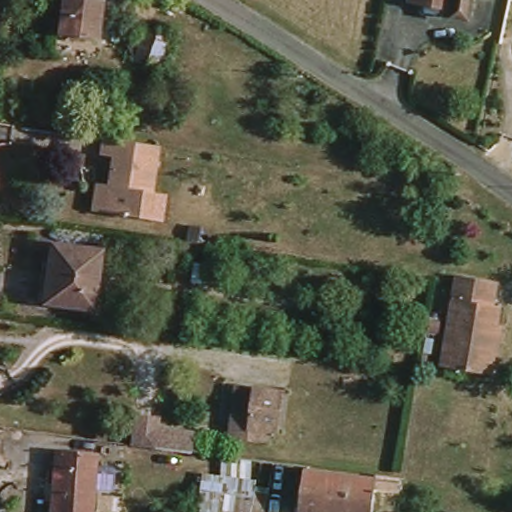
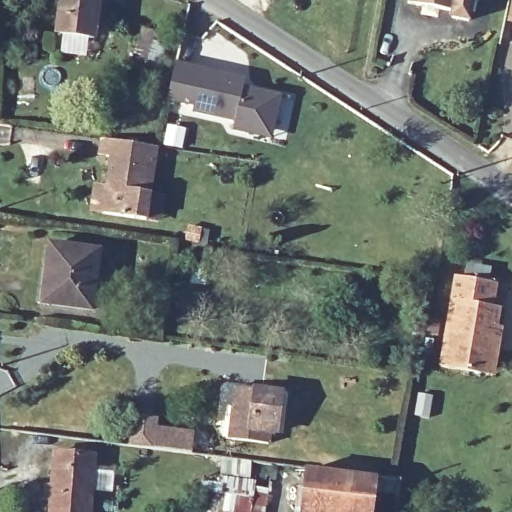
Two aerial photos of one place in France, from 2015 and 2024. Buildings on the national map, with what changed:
unchanged [(100,4),(95,38),(59,33),(64,0),(71,0),(100,4)]
unchanged [(474,22),(457,19),(459,11),(412,1),(412,0),(480,0),(474,22)]
new [(507,14),(510,0),(512,0),(512,15),(507,14)]
unchanged [(163,66),(133,60),(143,26),(173,32),(163,66)]
new [(247,76),(245,87),(284,94),(274,142),(234,134),(235,122),(194,115),(194,107),(169,102),(177,62),(247,76)]
unchanged [(114,142),(158,148),(149,220),(105,215),(114,142)]
unchanged [(48,244),(100,252),(91,311),(38,302),(48,244)]
unchanged [(505,328),(496,327),(489,362),(487,375),(447,367),(462,279),(503,286),(498,310),(508,311),(505,328)]
unchanged [(235,425),(239,397),(239,384),(286,390),(284,403),(280,429),(272,427),(270,441),(244,438),(233,437),(235,425)]
unchanged [(154,415),(154,427),(192,431),(189,453),(126,446),(132,412),(154,415)]
unchanged [(192,506),(198,454),(224,456),(223,477),(257,480),(254,497),(268,499),(266,512),(199,512),(199,506),(192,506)]
unchanged [(98,457),(92,512),(51,512),(55,455),(98,457)]
unchanged [(379,477),(375,512),(305,512),(310,468),(379,477)]

